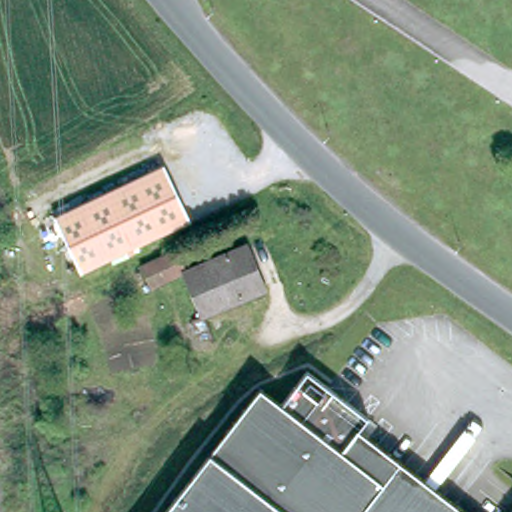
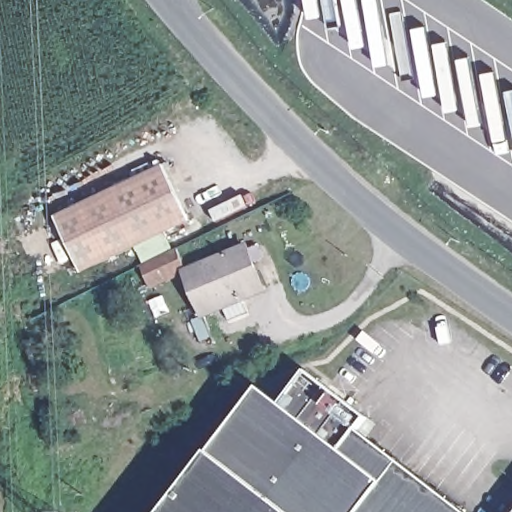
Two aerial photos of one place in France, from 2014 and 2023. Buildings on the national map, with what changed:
unchanged [(188,222),(81,271),(56,219),(163,167),(188,222)]
unchanged [(268,289),(206,312),(191,271),(251,244),(268,289)]
unchanged [(191,271),(155,287),(147,265),(182,249),(191,271)]
unchanged [(281,398),(306,364),(366,410),(357,424),(471,512),(161,512),(259,383),(281,398)]

